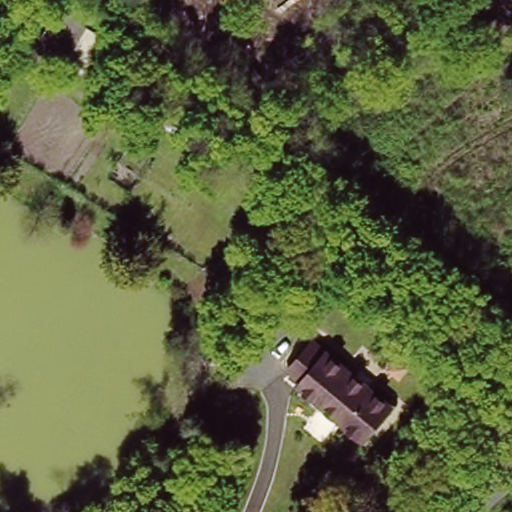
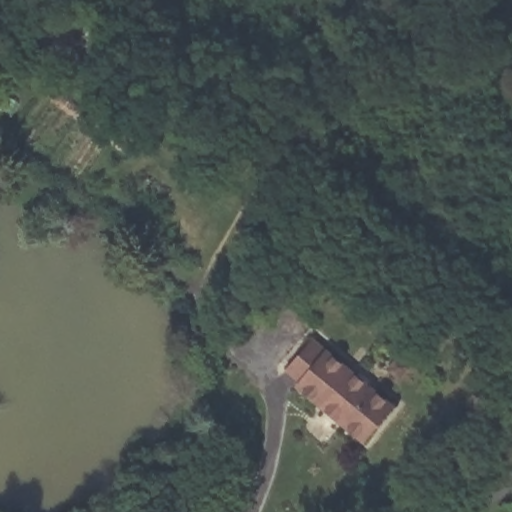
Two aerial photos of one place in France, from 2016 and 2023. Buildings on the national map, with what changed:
unchanged [(72,37),(51,71),(24,55),(45,21),(72,37)]
unchanged [(276,204),(266,197),(263,201),(239,185),(258,155),(282,169),(294,176),(276,204)]
unchanged [(391,410),(362,442),(298,388),(303,382),(290,370),(315,342),(391,410)]

